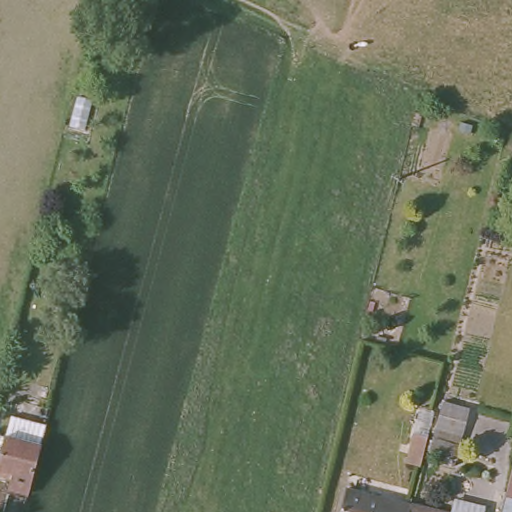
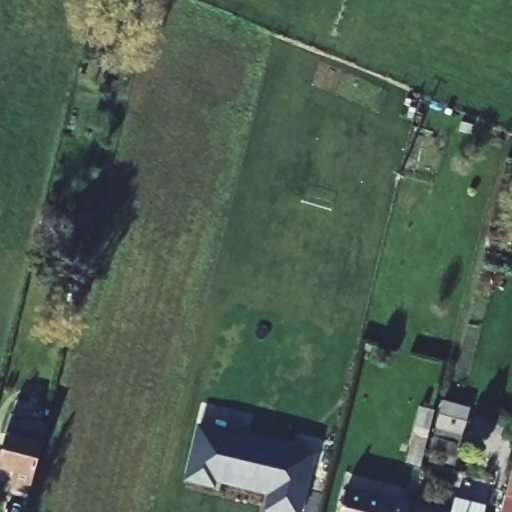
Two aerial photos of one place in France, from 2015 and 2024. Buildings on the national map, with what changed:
unchanged [(431,451),(435,437),(429,436),(435,409),(467,417),(460,444),(436,438),(460,445),(455,459),(431,451)]
unchanged [(26,504),(7,499),(10,483),(0,480),(0,440),(5,422),(44,432),(26,504)]
new [(214,481),(206,487),(191,483),(186,476),(198,430),(312,458),(298,512),(265,512),(269,495),(214,481)]
unchanged [(414,433),(429,436),(421,466),(407,462),(414,433)]
unchanged [(512,464),(512,498),(504,496),(511,468),(512,464)]
unchanged [(411,495),(407,512),(337,512),(347,477),(411,495)]
unchanged [(450,505),(454,488),(486,496),(482,512),(407,512),(411,495),(450,505)]

